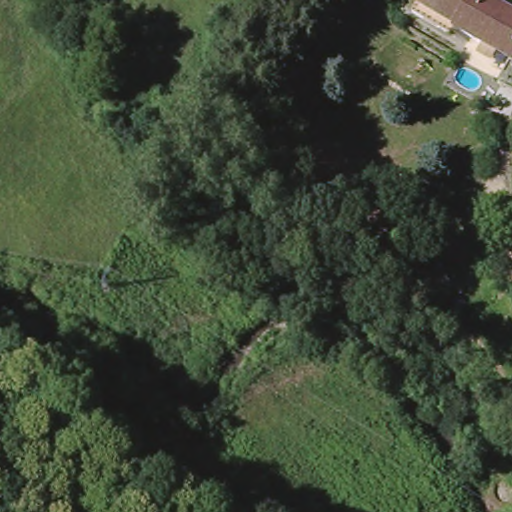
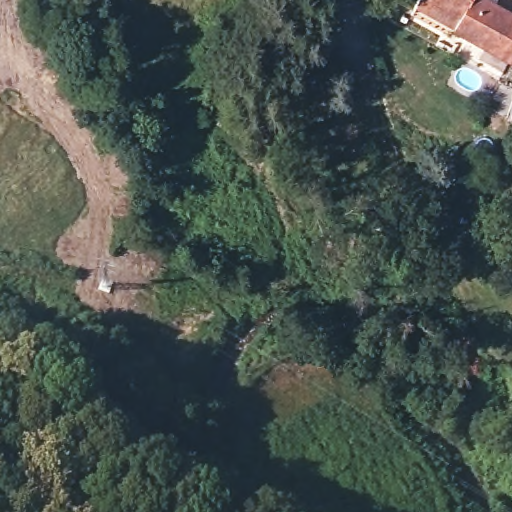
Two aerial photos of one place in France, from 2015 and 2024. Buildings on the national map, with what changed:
unchanged [(511,60),(450,29),(458,12),(432,0),(489,0),(512,12),(512,59),(511,60)]

